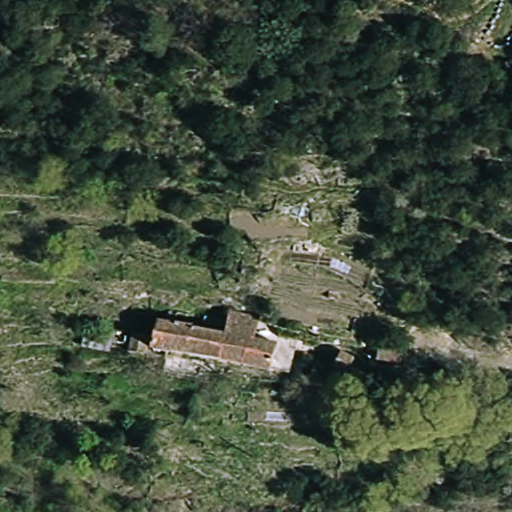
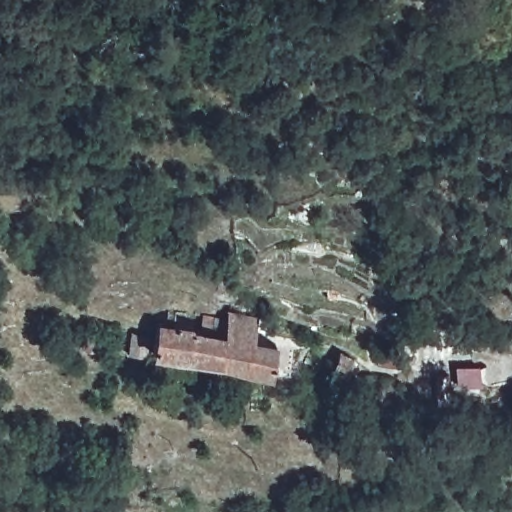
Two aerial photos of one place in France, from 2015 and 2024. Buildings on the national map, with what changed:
unchanged [(263,310),(257,340),(278,346),(268,377),(152,352),(159,313),(230,327),(237,302),(263,310)]
unchanged [(343,351),(360,358),(354,377),(334,367),(343,351)]

